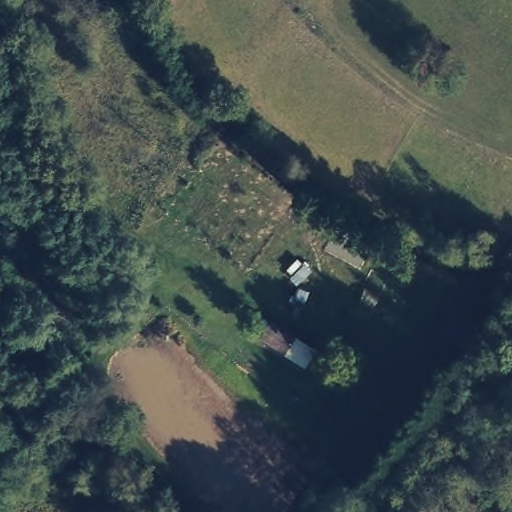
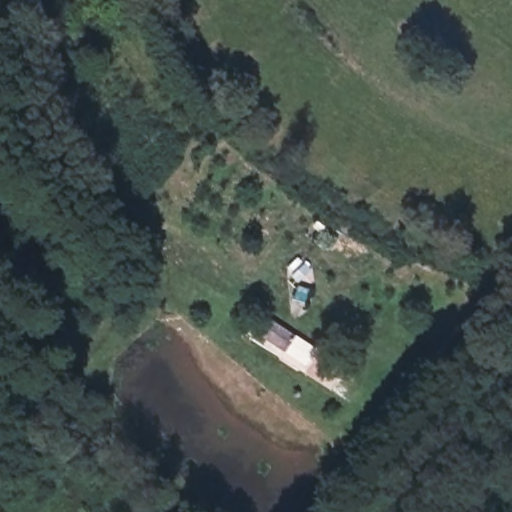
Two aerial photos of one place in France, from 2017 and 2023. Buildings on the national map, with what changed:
unchanged [(292,337),(281,351),(263,337),(274,322),(292,337)]

